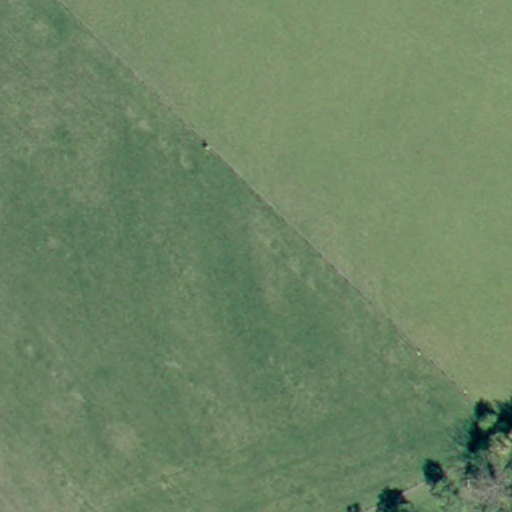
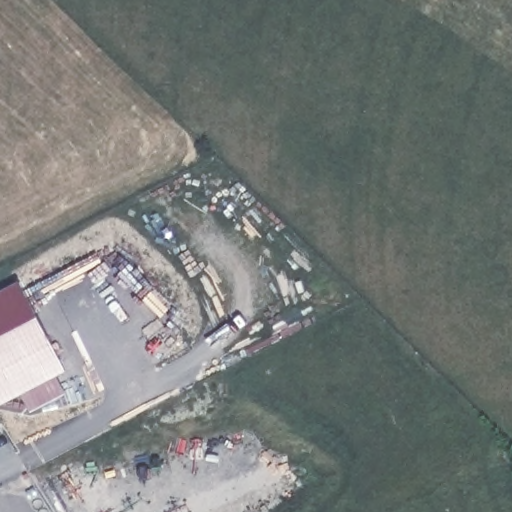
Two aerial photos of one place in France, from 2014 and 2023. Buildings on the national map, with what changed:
new [(19,280),(65,371),(0,404),(0,290),(19,280)]

